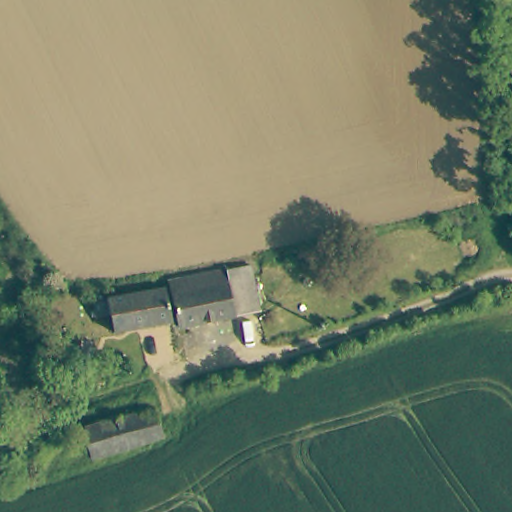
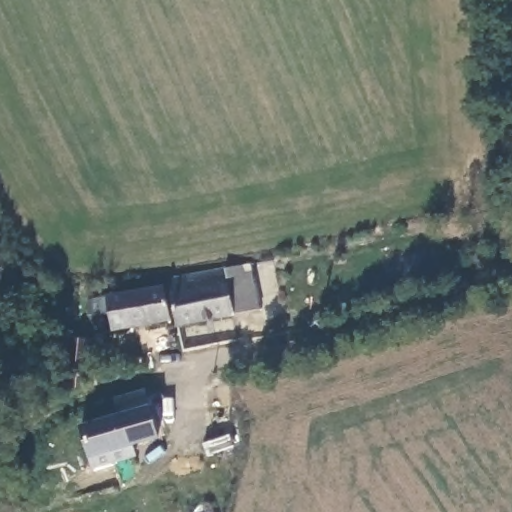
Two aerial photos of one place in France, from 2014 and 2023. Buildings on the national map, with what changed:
unchanged [(466,198),(473,197),(479,202),(480,210),(475,216),(467,216),(462,211),(461,204),(466,198)]
unchanged [(250,261),(262,303),(182,323),(170,280),(250,261)]
unchanged [(166,288),(175,319),(117,334),(112,316),(102,319),(99,306),(166,288)]
unchanged [(153,409),(160,438),(94,453),(87,424),(153,409)]

